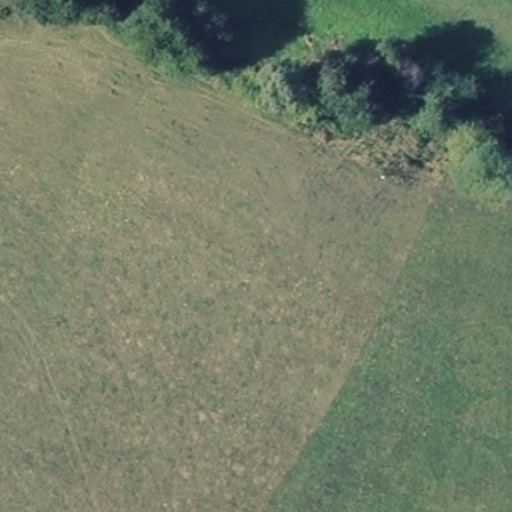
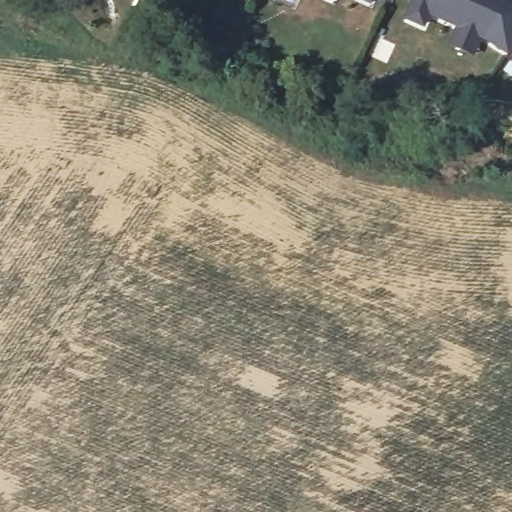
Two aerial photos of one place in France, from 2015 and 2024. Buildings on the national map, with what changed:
new [(382,6),(369,0),(385,0),(382,6)]
new [(427,0),(512,0),(512,53),(507,50),(496,42),(440,16),(434,29),(418,21),(427,0)]

